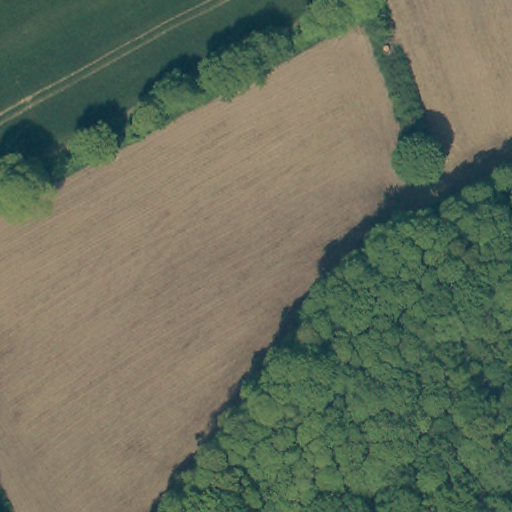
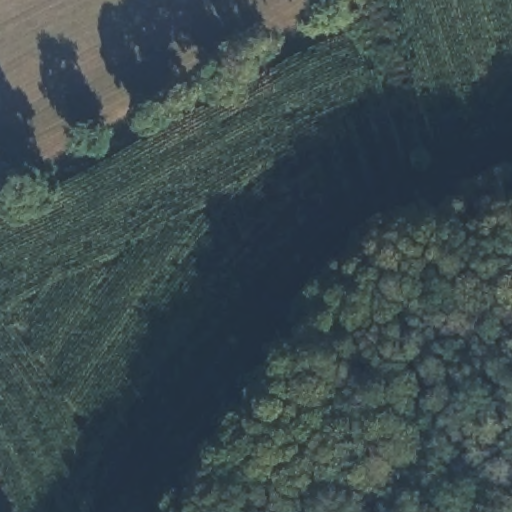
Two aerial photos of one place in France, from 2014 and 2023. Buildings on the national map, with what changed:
[]

